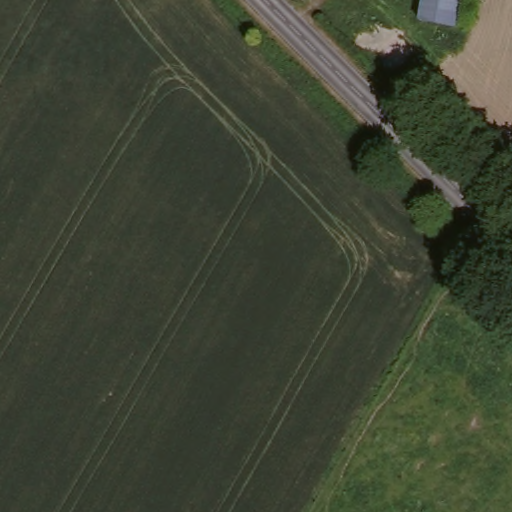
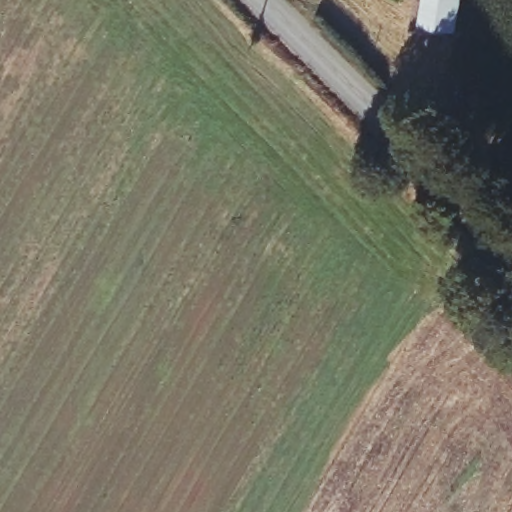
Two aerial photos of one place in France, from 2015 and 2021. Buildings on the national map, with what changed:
unchanged [(452,29),(416,22),(420,0),(457,0),(452,29)]

